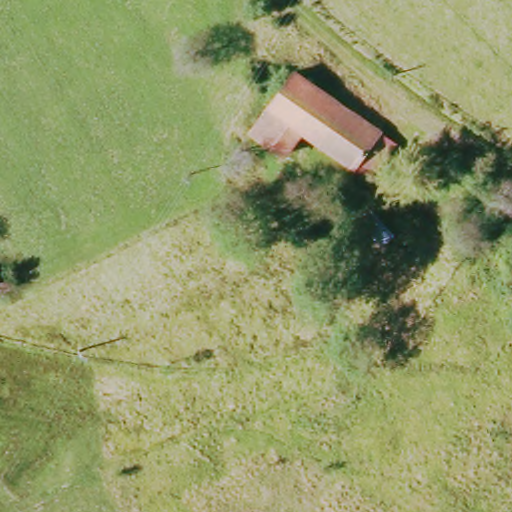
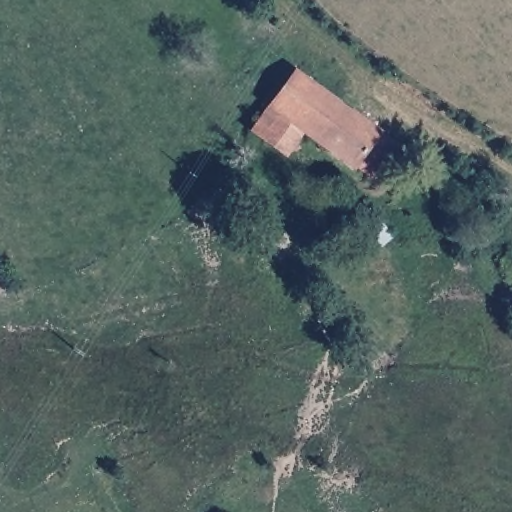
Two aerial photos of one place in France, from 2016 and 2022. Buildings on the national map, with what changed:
unchanged [(293,71),(396,141),(373,180),(300,131),(283,155),(250,134),(293,71)]

